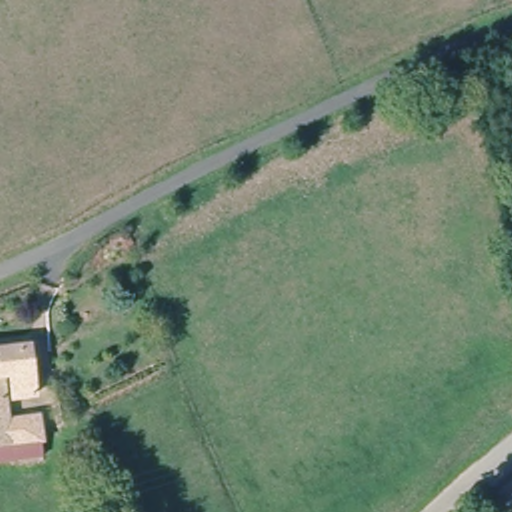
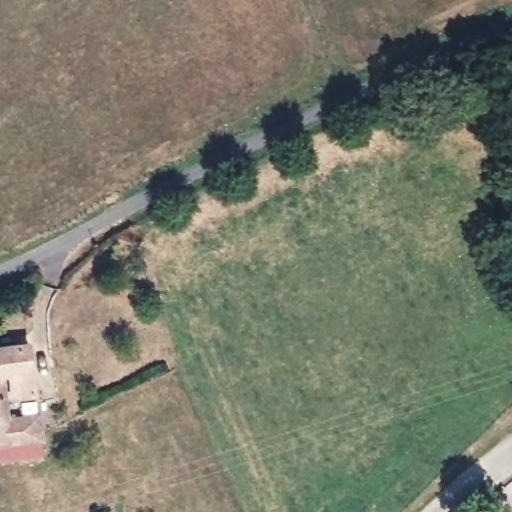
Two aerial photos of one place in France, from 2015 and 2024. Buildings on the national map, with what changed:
unchanged [(39,399),(12,402),(12,415),(41,411),(47,453),(0,460),(0,347),(32,343),(39,399)]

